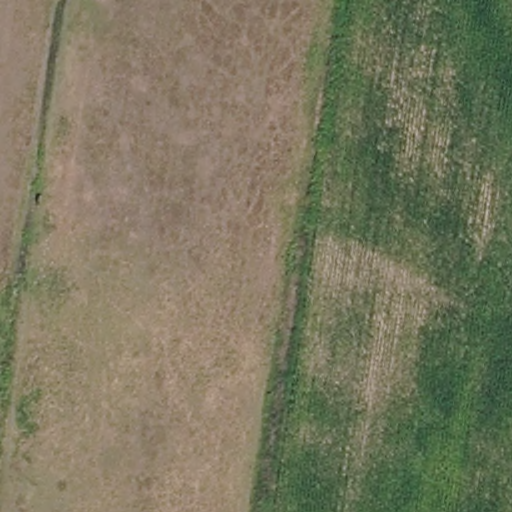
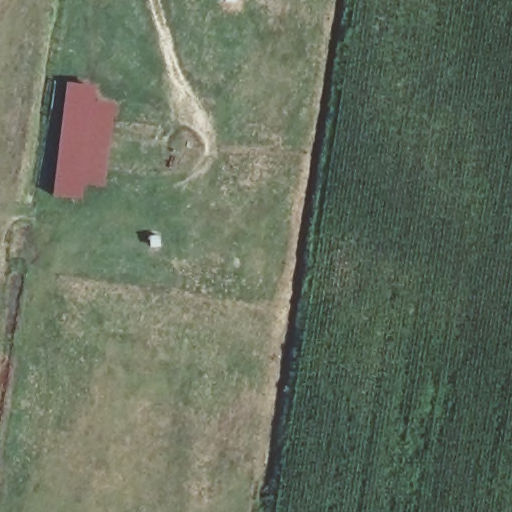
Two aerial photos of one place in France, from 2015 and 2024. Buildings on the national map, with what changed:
new [(84,182),(82,198),(54,195),(66,81),(97,86),(95,100),(117,104),(106,184),(84,182)]

